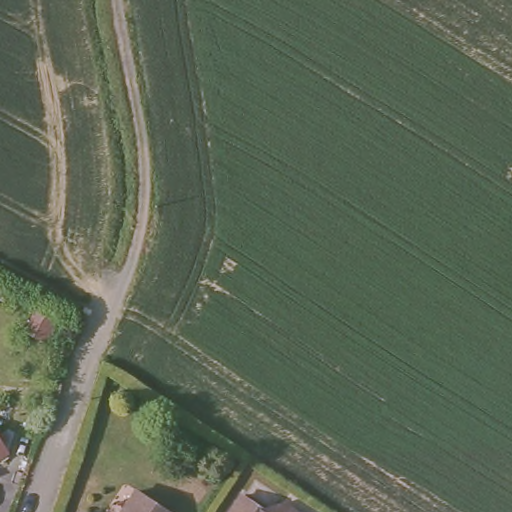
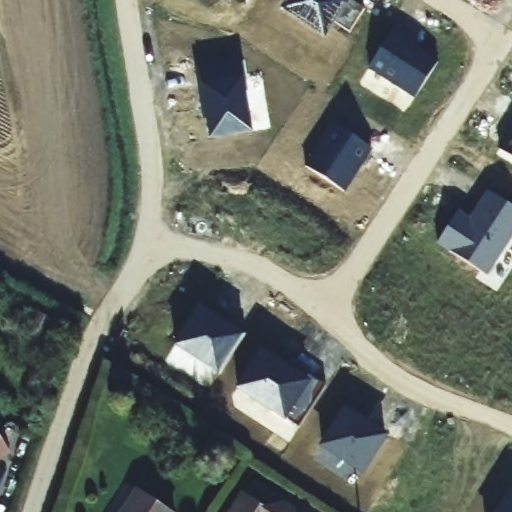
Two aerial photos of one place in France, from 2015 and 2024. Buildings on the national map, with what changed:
new [(235,0),(233,3),(228,0),(235,0)]
new [(286,0),(349,0),(364,9),(349,32),(334,23),(324,40),(279,11),(286,0)]
new [(369,69),(392,32),(437,62),(414,99),(369,69)]
new [(201,84),(242,77),(252,133),(209,140),(201,84)]
new [(332,123),(372,150),(345,192),(304,166),(332,123)]
new [(499,150),(512,128),(512,158),(499,150)]
new [(459,210),(469,217),(487,190),(512,207),(512,237),(487,276),(437,244),(459,210)]
new [(198,305),(243,333),(218,373),(173,345),(198,305)]
new [(236,389),(261,350),(306,379),(308,375),(324,386),(299,427),(286,419),(285,421),(236,389)]
new [(319,446),(344,406),(389,436),(363,475),(319,446)]
unchanged [(0,457),(0,440),(8,452),(0,457)]
unchanged [(142,486),(179,511),(179,512),(125,512),(142,486)]
new [(512,489),(512,512),(497,512),(512,489)]
unchanged [(248,500),(266,512),(240,512),(248,500)]
unchanged [(288,508),(293,512),(285,512),(288,508)]

